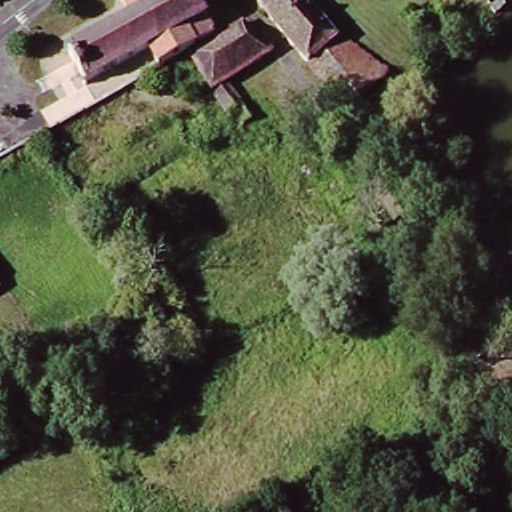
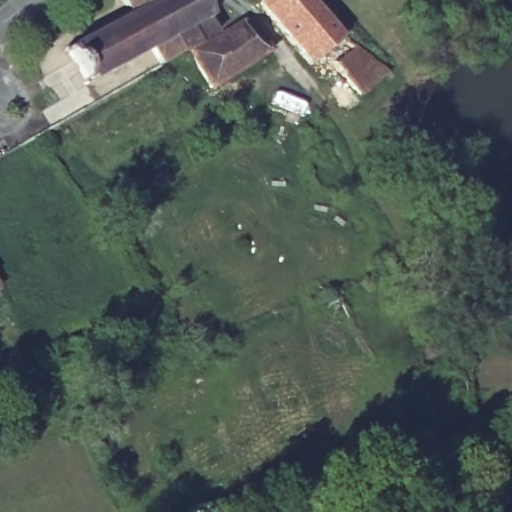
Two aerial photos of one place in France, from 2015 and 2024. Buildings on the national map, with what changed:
unchanged [(197,44),(161,65),(150,45),(87,79),(82,88),(77,87),(79,75),(67,53),(59,50),(59,43),(71,46),(131,15),(123,0),(199,0),(209,17),(205,21),(212,35),(197,44)]
unchanged [(305,60),(297,47),(255,0),(306,0),(340,35),(386,69),(360,93),(337,64),(318,79),(305,60)]
unchanged [(232,24),(217,32),(209,17),(225,9),(232,24)]
unchanged [(232,24),(241,18),(273,49),(217,91),(196,49),(232,24)]
unchanged [(238,84),(260,117),(242,127),(220,96),(238,84)]

